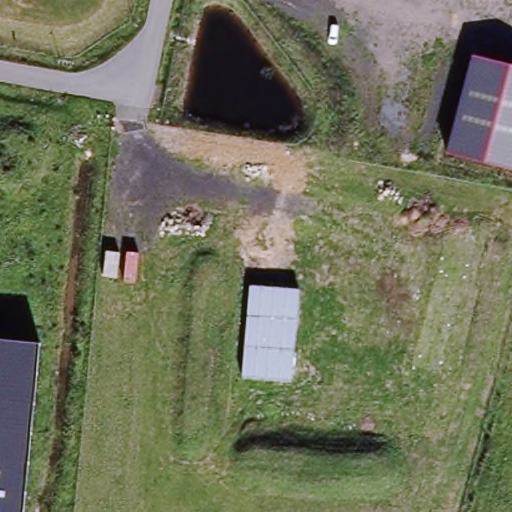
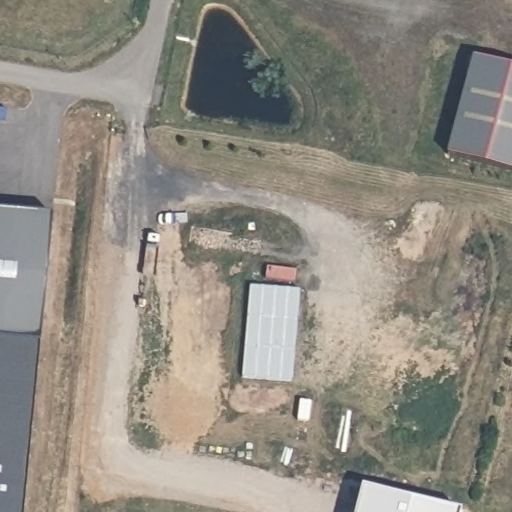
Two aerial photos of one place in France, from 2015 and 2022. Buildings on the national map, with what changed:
unchanged [(472,56),(512,67),(512,171),(446,154),(472,56)]
new [(0,341),(0,211),(52,216),(39,345),(0,341)]
unchanged [(249,287),(298,292),(292,381),(242,378),(249,287)]
unchanged [(23,512),(0,512),(0,341),(39,345),(23,512)]
new [(462,511),(461,512),(354,512),(361,486),(462,511)]

